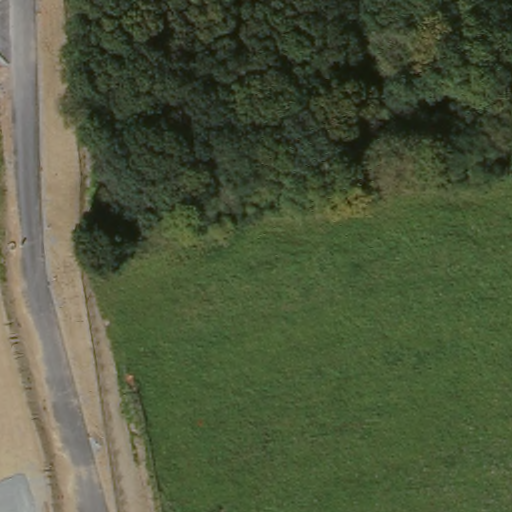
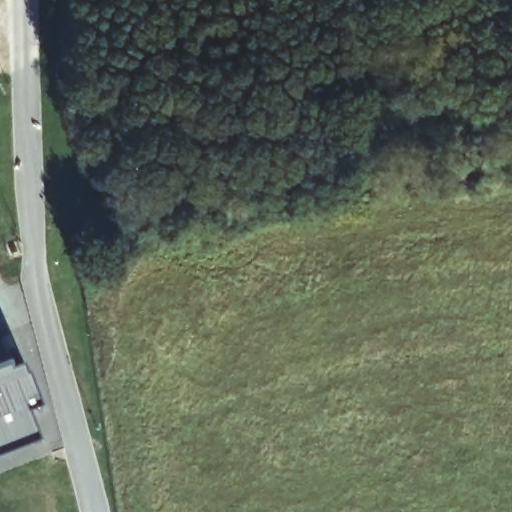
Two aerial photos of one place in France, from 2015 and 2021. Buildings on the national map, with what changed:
new [(11,370),(22,365),(39,405),(25,412),(35,440),(0,453),(0,341),(11,370)]

